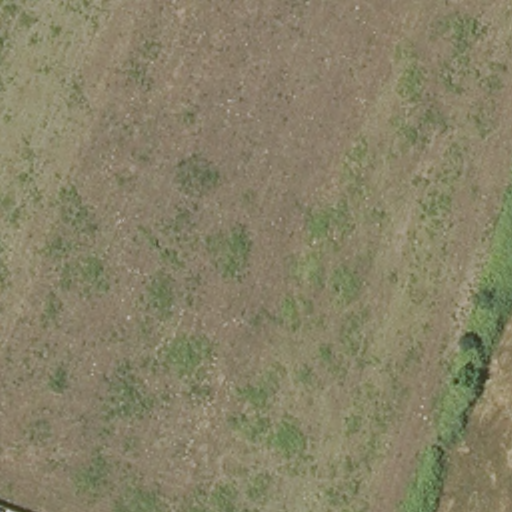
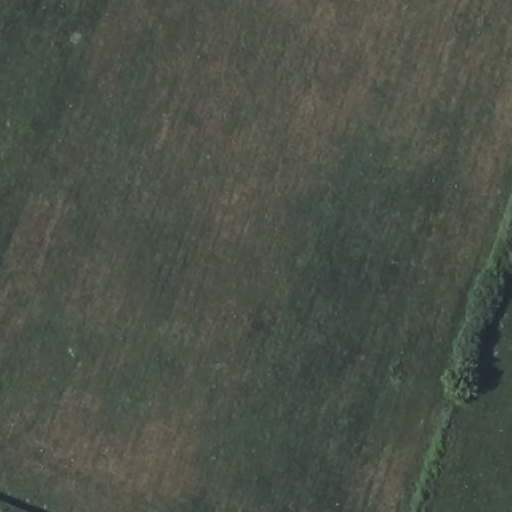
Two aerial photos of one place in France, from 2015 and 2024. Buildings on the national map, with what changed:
[]

